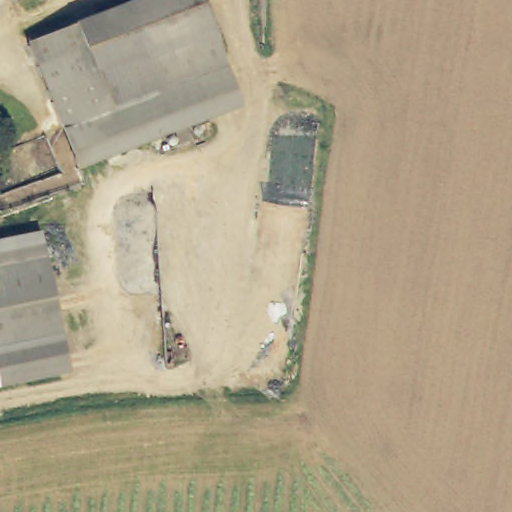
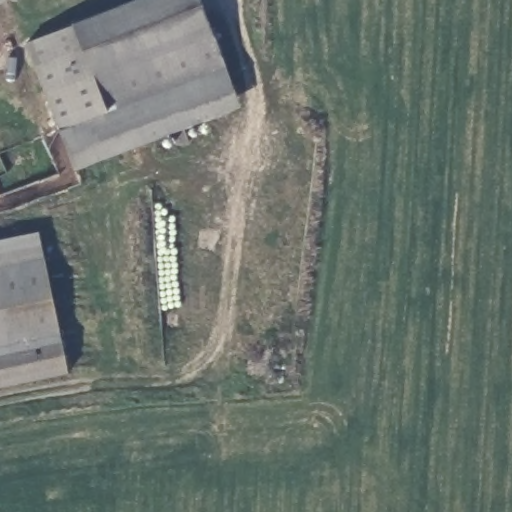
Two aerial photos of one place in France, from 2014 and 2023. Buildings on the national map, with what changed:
unchanged [(76,35),(168,0),(198,0),(226,75),(108,121),(76,35)]
unchanged [(108,121),(61,139),(29,53),(76,35),(108,121)]
unchanged [(108,121),(226,75),(235,100),(71,162),(61,139),(108,121)]
unchanged [(43,260),(0,269),(0,239),(38,231),(43,260)]
unchanged [(66,371),(0,384),(0,269),(43,260),(66,371)]

